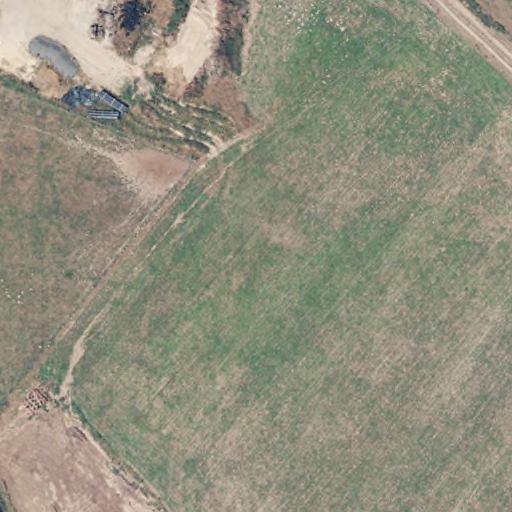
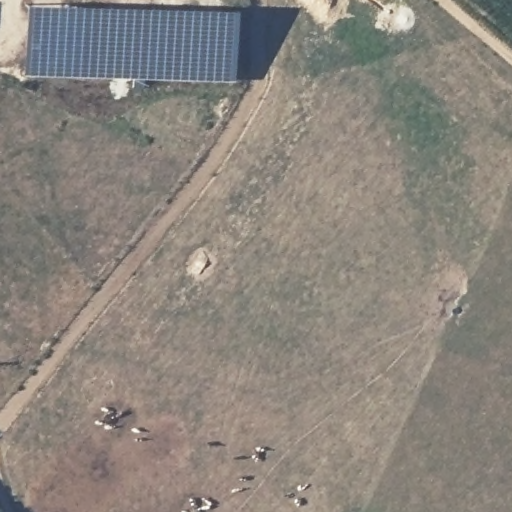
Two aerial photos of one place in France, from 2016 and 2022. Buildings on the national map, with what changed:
new [(26,1),(238,8),(233,79),(24,74),(26,1)]

